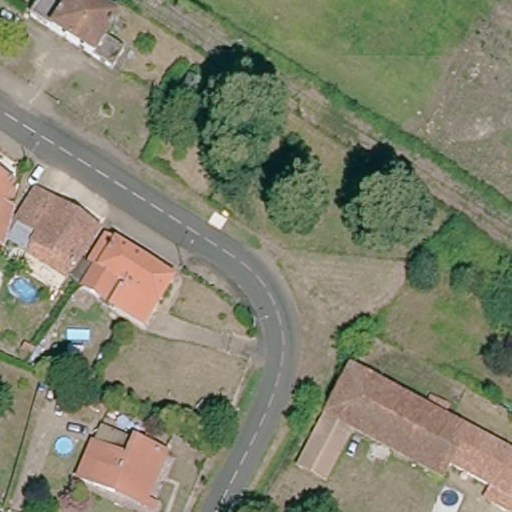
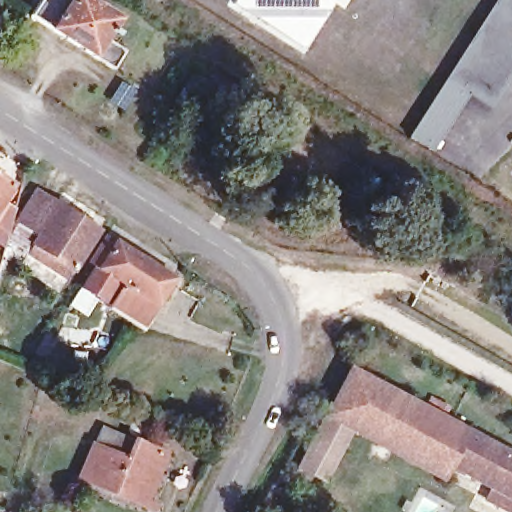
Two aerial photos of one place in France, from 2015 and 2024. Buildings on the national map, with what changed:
unchanged [(126,49),(114,70),(30,16),(39,0),(95,0),(120,16),(106,36),(126,49)]
new [(334,0),(302,50),(233,4),(234,0),(334,0)]
new [(491,109),(470,95),(430,154),(407,139),(494,0),(512,0),(512,77),(491,109)]
unchanged [(0,201),(0,177),(11,186),(0,201)]
unchanged [(25,249),(36,232),(14,218),(34,189),(56,203),(95,230),(64,276),(25,249)]
unchanged [(4,247),(0,244),(0,202),(12,211),(4,247)]
unchanged [(174,277),(144,323),(111,302),(120,287),(114,284),(105,298),(85,285),(97,266),(91,262),(110,235),(174,277)]
unchanged [(0,283),(0,276),(3,277),(1,283),(0,283)]
demolished [(196,338),(185,336),(188,323),(197,325),(196,338)]
unchanged [(512,457),(512,500),(448,466),(441,478),(349,429),(321,481),(292,466),(321,414),(345,368),(512,457)]
unchanged [(90,445),(127,456),(132,439),(164,448),(148,500),(80,479),(90,445)]

